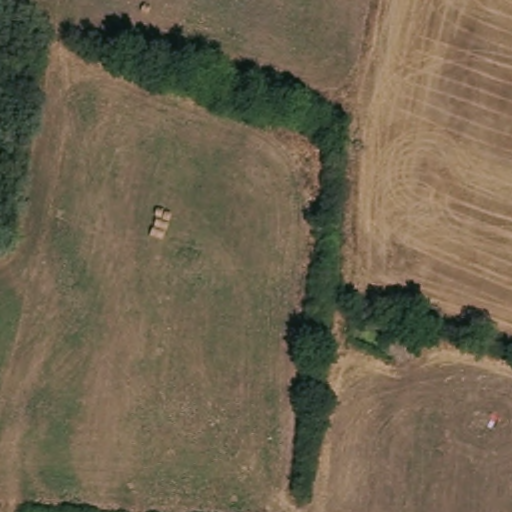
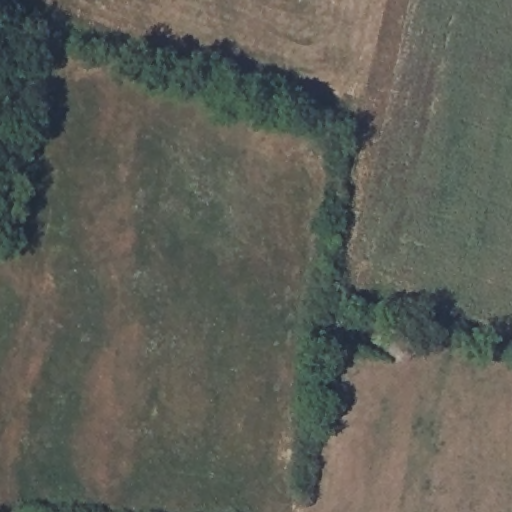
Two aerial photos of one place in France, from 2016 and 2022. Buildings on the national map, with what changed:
[]

